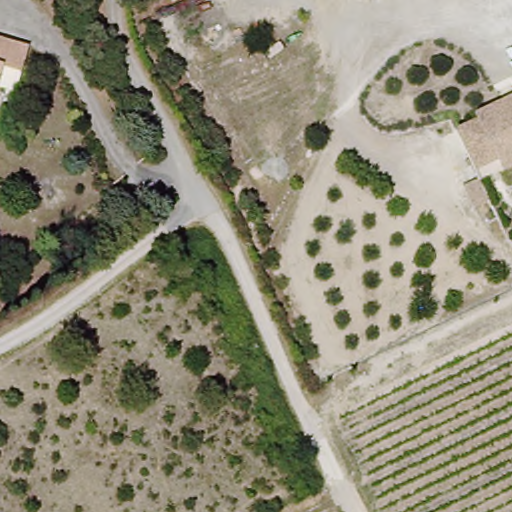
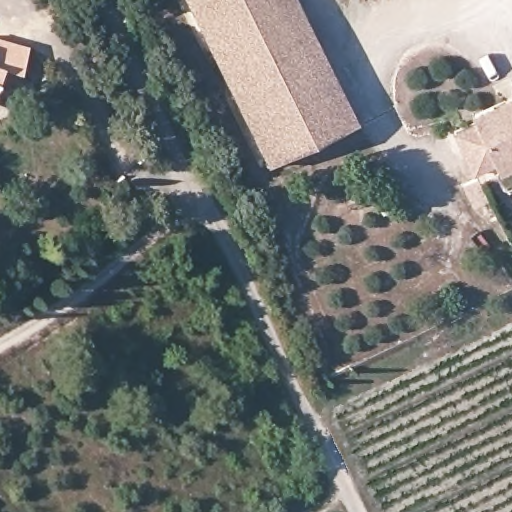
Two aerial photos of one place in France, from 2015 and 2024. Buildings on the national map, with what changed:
new [(264,168),(183,0),(295,0),(354,123),(264,168)]
unchanged [(23,84),(2,79),(0,83),(0,49),(7,51),(29,58),(23,84)]
unchanged [(493,162),(491,157),(473,116),(471,111),(491,102),(512,93),(512,161),(495,168),(493,162)]
unchanged [(469,166),(452,126),(473,116),(491,157),(469,166)]

